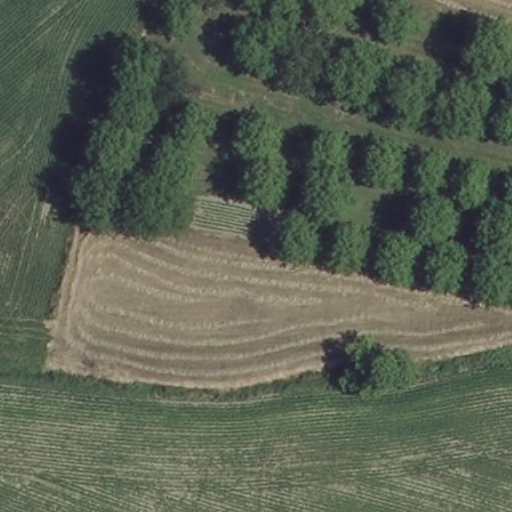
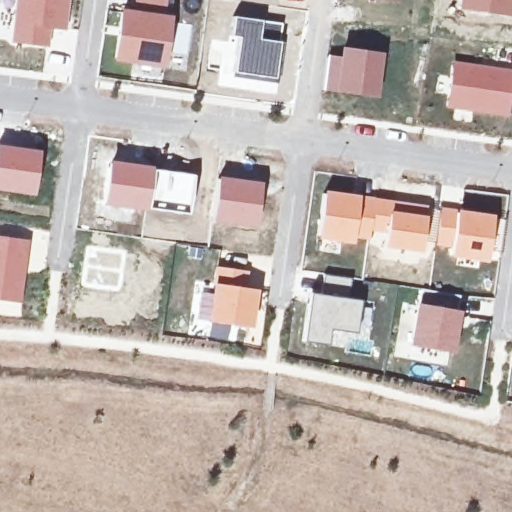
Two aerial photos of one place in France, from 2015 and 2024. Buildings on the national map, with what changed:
new [(51,29),(48,47),(10,42),(15,0),(69,0),(66,30),(51,29)]
new [(163,67),(113,60),(121,7),(133,8),(134,0),(167,0),(165,12),(171,13),(170,22),(192,25),(187,56),(166,53),(163,67)]
new [(379,0),(397,0),(397,2),(379,0)]
new [(512,0),(509,15),(458,9),(459,0),(512,0)]
new [(231,14),(281,22),(275,82),(231,76),(235,41),(228,38),(231,14)]
new [(327,53),(338,55),(339,46),(383,51),(376,97),(322,90),(327,53)]
new [(453,60),(512,69),(512,93),(509,117),(446,108),(453,60)]
new [(33,194),(0,190),(0,144),(38,149),(33,194)]
new [(108,160),(153,166),(148,209),(103,206),(108,160)]
new [(153,166),(194,173),(188,214),(148,209),(153,166)]
new [(218,175),(261,180),(254,227),(213,221),(218,175)]
new [(322,189),(391,199),(383,236),(373,235),(372,241),(353,238),(353,243),(316,238),(322,189)]
new [(383,236),(391,199),(426,204),(419,251),(381,245),(383,236)]
new [(440,206),(492,212),(487,260),(449,255),(450,247),(434,245),(440,206)]
new [(21,302),(0,300),(0,235),(29,239),(21,302)]
new [(199,290),(211,292),(215,265),(248,269),(247,286),(257,287),(251,327),(231,325),(228,340),(208,337),(209,322),(195,319),(199,290)]
new [(309,290),(320,292),(323,273),(351,277),(348,296),(359,298),(355,333),(330,330),(327,345),(301,341),(309,290)]
new [(418,300),(459,307),(453,351),(408,344),(418,300)]

